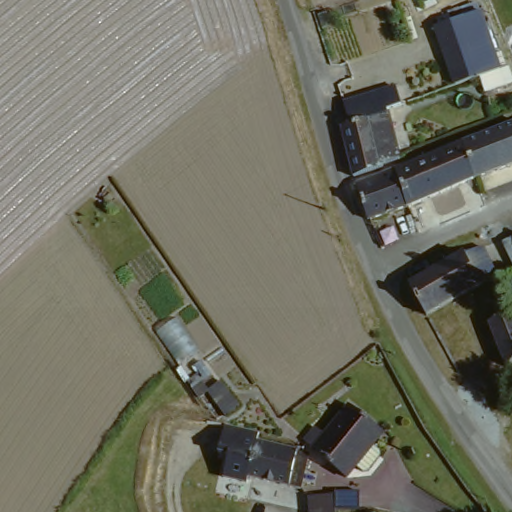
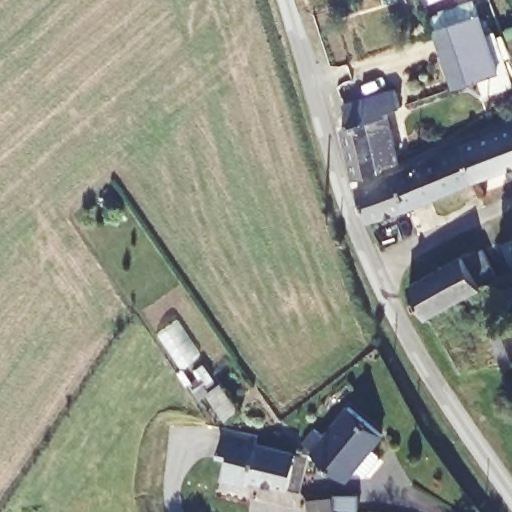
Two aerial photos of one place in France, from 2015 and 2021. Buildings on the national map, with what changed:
unchanged [(506,71),(465,85),(447,21),(484,7),(506,71)]
unchanged [(395,93),(400,108),(385,113),(399,163),(400,165),(382,170),(383,174),(356,181),(355,181),(342,130),(350,129),(344,106),(395,93)]
unchanged [(512,131),(512,168),(473,181),(461,148),(471,144),(512,131)]
unchanged [(461,148),(473,181),(408,210),(397,177),(461,148)]
unchanged [(397,177),(408,210),(368,222),(357,190),(397,177)]
unchanged [(512,266),(501,238),(512,235),(512,266)]
unchanged [(409,280),(457,254),(464,252),(481,247),(496,276),(481,284),(426,310),(409,280)]
unchanged [(512,271),(512,305),(501,276),(512,271)]
unchanged [(489,322),(512,313),(512,363),(506,364),(489,322)]
unchanged [(227,384),(245,410),(226,420),(210,396),(227,384)]
unchanged [(314,432),(325,440),(347,410),(379,436),(373,445),(382,451),(381,459),(371,472),(364,471),(358,465),(345,480),(314,456),(315,454),(304,445),(314,432)]
unchanged [(256,434),(254,446),(308,456),(302,490),(248,480),(248,484),(225,479),(228,455),(219,454),(223,426),(256,434)]
unchanged [(339,505),(339,509),(340,512),(314,512),(313,506),(339,505)]

